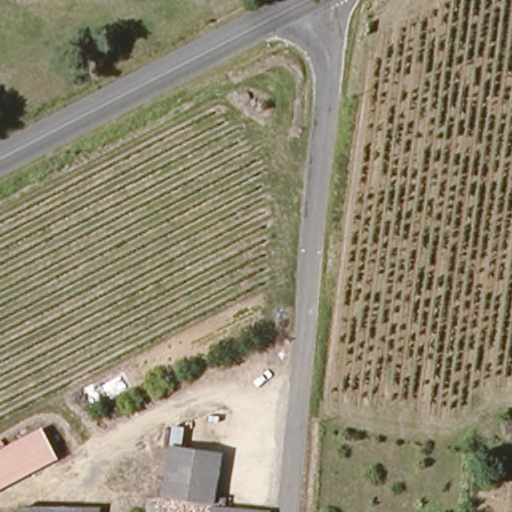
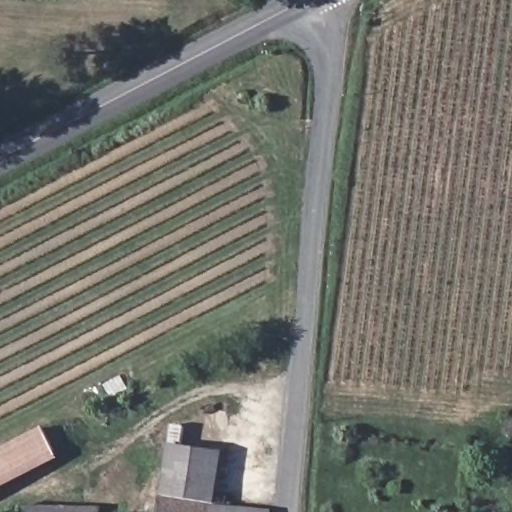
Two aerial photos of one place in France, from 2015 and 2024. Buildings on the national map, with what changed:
unchanged [(51,449),(0,475),(0,445),(39,425),(51,449)]
unchanged [(194,497),(180,496),(165,493),(172,440),(220,447),(212,501),(194,497)]
unchanged [(160,492),(165,493),(180,496),(194,497),(212,501),(221,502),(255,507),(265,508),(265,509),(265,512),(158,512),(160,492)]
unchanged [(96,505),(94,512),(16,512),(18,502),(96,505)]

